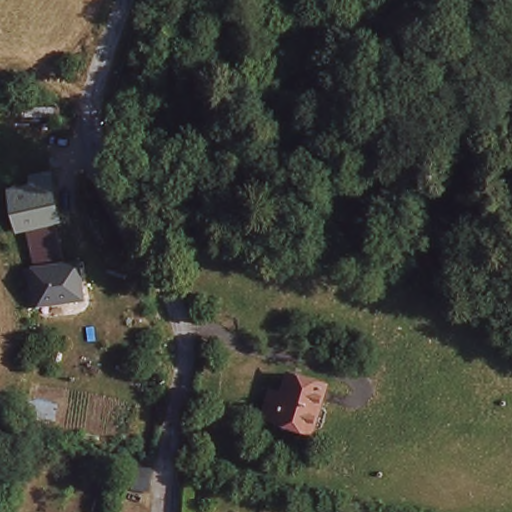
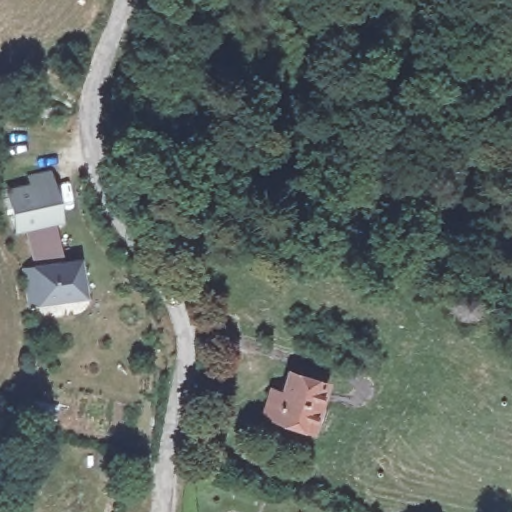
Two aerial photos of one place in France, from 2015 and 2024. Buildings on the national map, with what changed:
unchanged [(21,238),(17,224),(2,226),(0,216),(0,191),(17,188),(15,176),(35,174),(37,185),(60,181),(69,217),(45,221),(42,221),(45,234),(21,238)]
unchanged [(82,258),(87,291),(32,300),(26,267),(82,258)]
unchanged [(286,394),(292,372),(327,383),(320,405),(327,407),(322,425),(316,423),(315,426),(282,415),(282,413),(269,409),(275,390),(286,394)]

